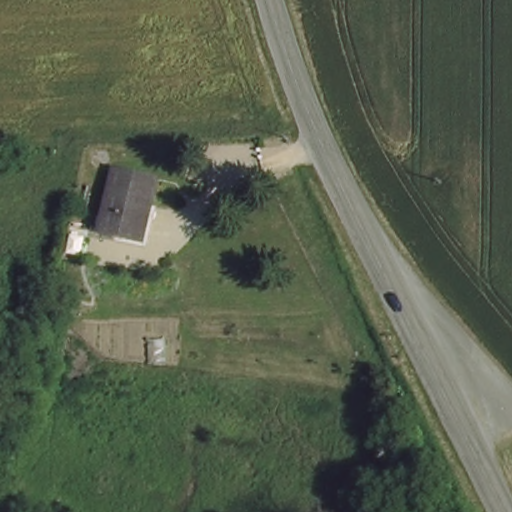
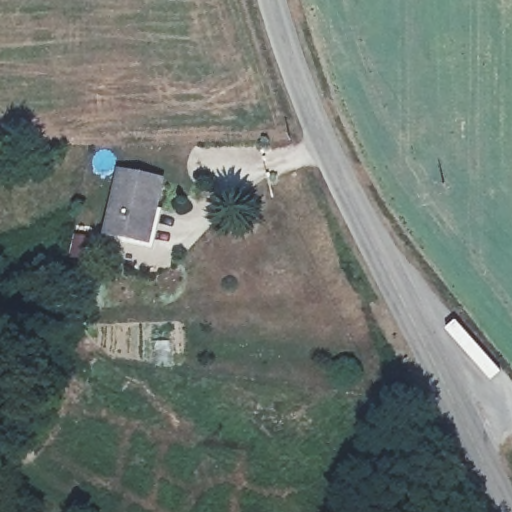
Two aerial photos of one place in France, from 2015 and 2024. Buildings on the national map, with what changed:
unchanged [(148,250),(109,242),(124,182),(163,189),(148,250)]

